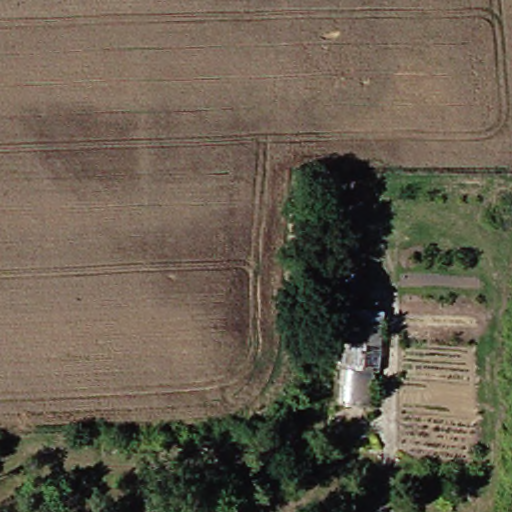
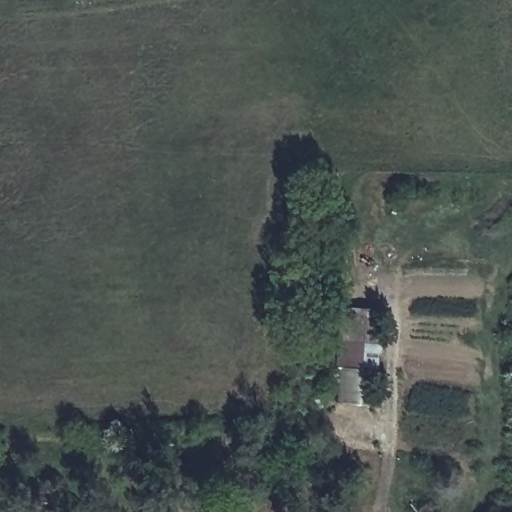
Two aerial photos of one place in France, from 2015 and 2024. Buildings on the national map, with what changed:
unchanged [(352,402),(353,368),(350,367),(353,306),(388,309),(382,402),(352,402)]

